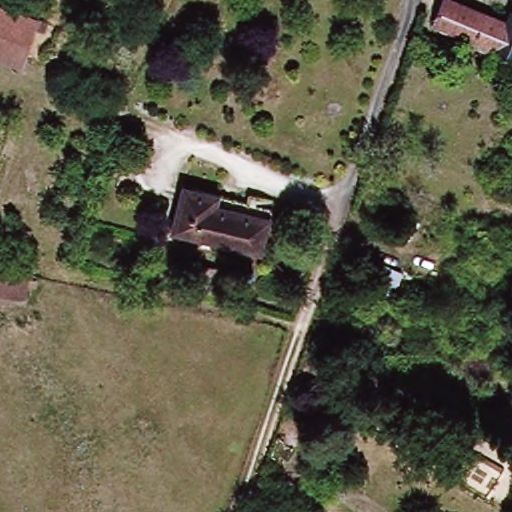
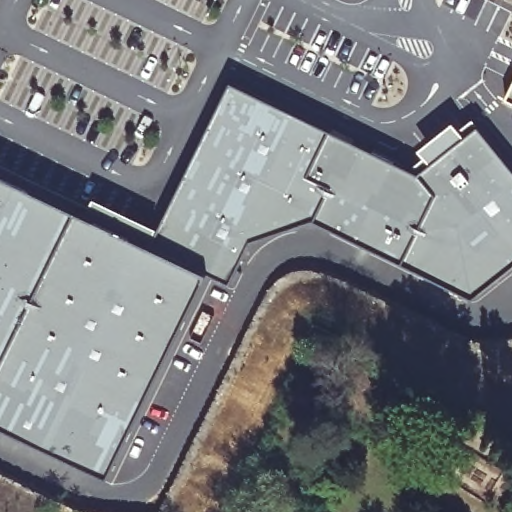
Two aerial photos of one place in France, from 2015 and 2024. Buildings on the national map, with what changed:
demolished [(446,0),(457,0),(510,23),(512,19),(512,54),(437,21),(446,0)]
demolished [(55,24),(37,73),(0,60),(0,53),(1,50),(15,10),(55,24)]
new [(512,102),(502,98),(512,79),(512,102)]
new [(230,88),(417,177),(475,129),(512,174),(512,268),(470,302),(312,223),(248,243),(228,287),(205,277),(103,484),(0,434),(0,177),(148,250),(230,88)]
demolished [(182,185),(218,194),(216,204),(270,218),(262,254),(170,231),(182,185)]
demolished [(398,307),(367,291),(381,264),(402,274),(396,285),(407,290),(398,307)]
demolished [(38,274),(30,303),(0,298),(0,267),(38,274)]

